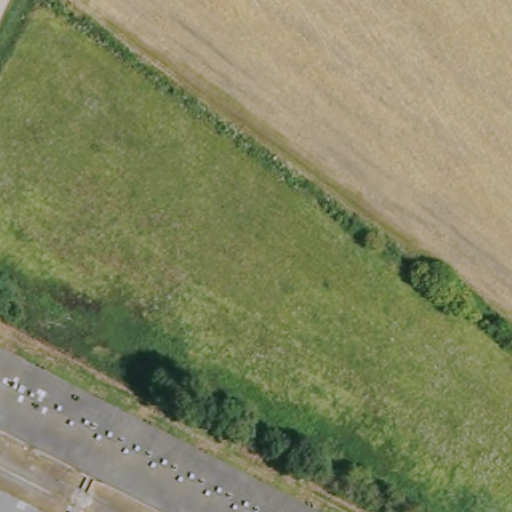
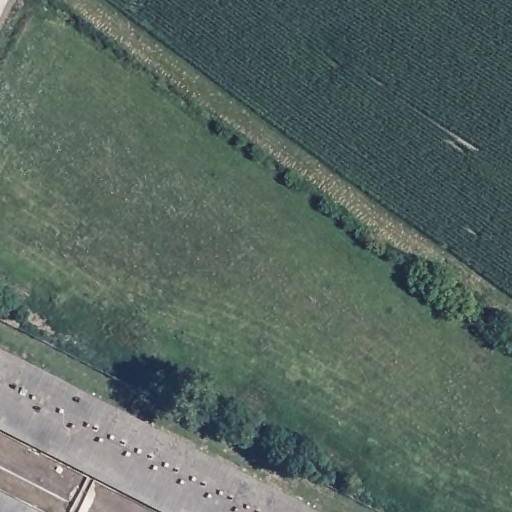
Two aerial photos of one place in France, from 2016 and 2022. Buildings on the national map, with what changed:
unchanged [(302,512),(166,512),(160,509),(0,427),(0,358),(302,512)]
unchanged [(0,512),(0,499),(26,512),(0,512)]

